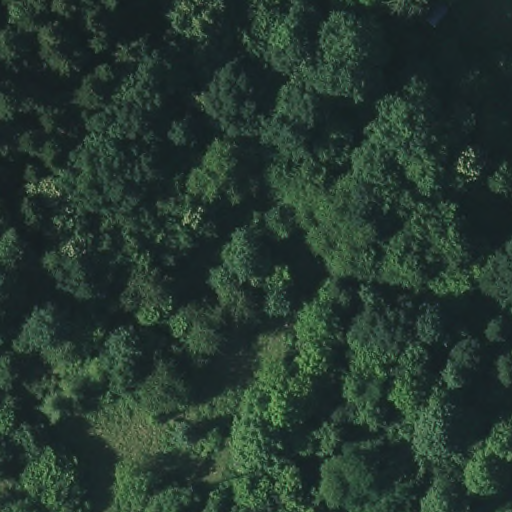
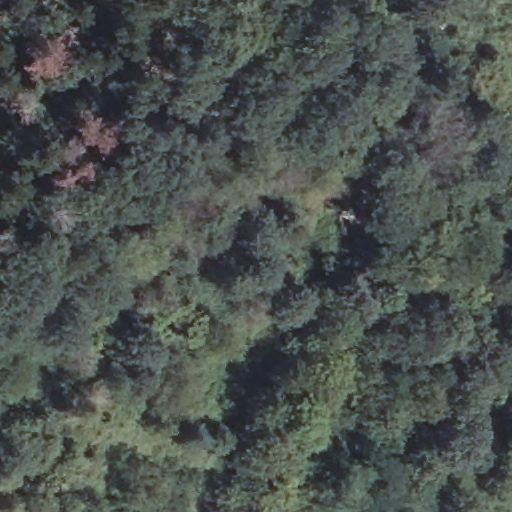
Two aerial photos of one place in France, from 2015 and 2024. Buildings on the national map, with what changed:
unchanged [(423,13),(431,0),(455,0),(457,1),(444,29),(423,13)]

